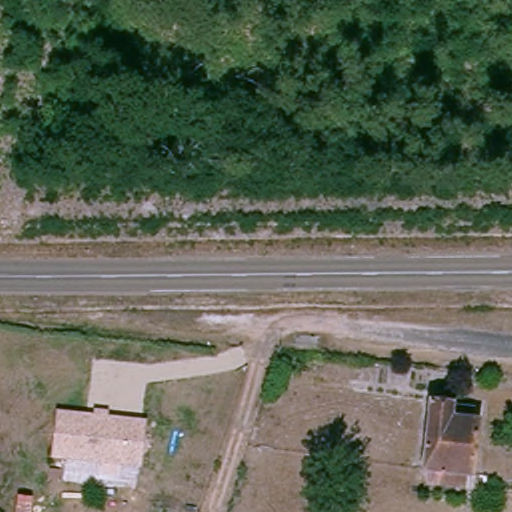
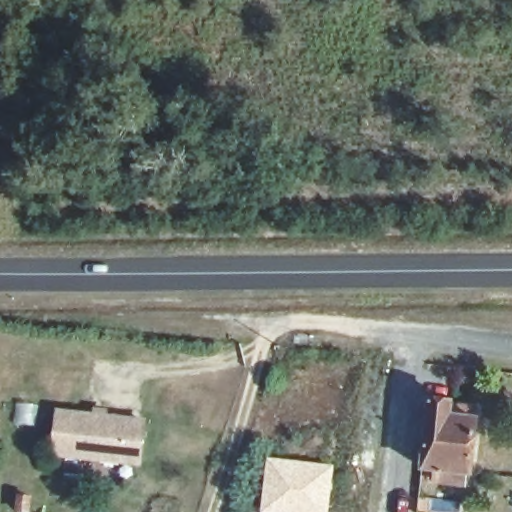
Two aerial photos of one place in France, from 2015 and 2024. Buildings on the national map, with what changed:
unchanged [(455,408),(474,409),(473,429),(478,429),(476,471),(470,472),(470,484),(437,482),(437,469),(425,468),(431,402),(452,402),(455,404),(455,408)]
unchanged [(141,422),(136,464),(50,455),(55,413),(141,422)]
new [(266,456),(334,464),(328,512),(260,512),(266,456)]

